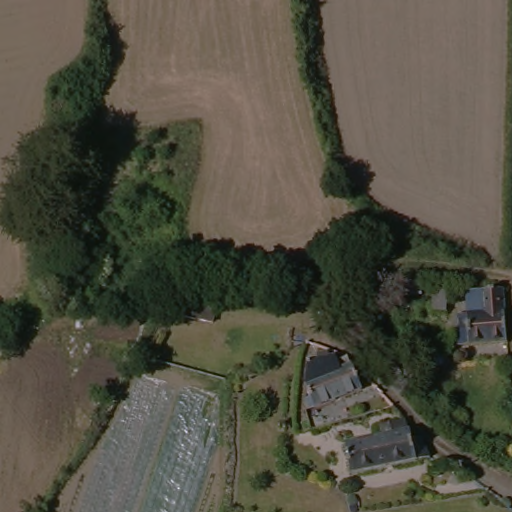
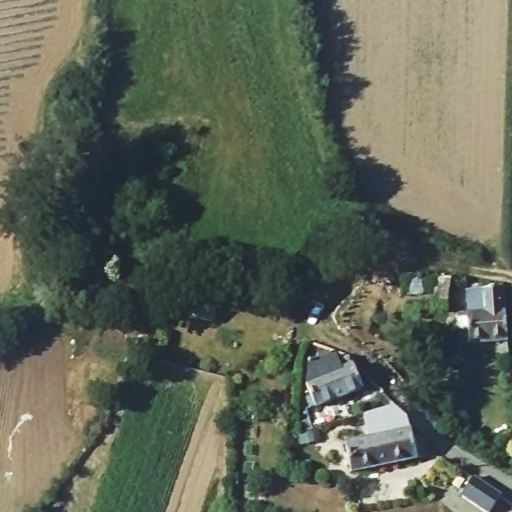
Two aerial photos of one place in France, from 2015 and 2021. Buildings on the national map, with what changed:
unchanged [(434,313),(413,313),(411,275),(431,277),(434,313)]
unchanged [(461,346),(459,318),(469,317),(467,291),(483,289),(509,288),(512,322),(512,343),(461,346)]
unchanged [(154,301),(190,303),(191,318),(154,315),(154,301)]
unchanged [(309,379),(308,363),(309,341),(319,341),(319,334),(333,334),(333,343),(339,343),(343,369),(358,367),(363,393),(314,403),(309,379)]
unchanged [(389,435),(388,422),(405,420),(421,446),(429,463),(344,469),(331,469),(328,439),(389,435)]

